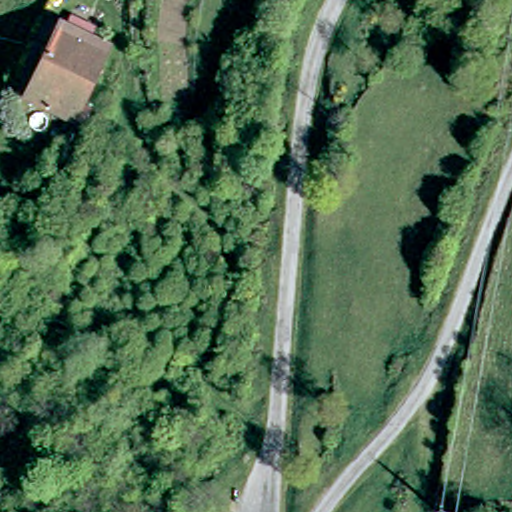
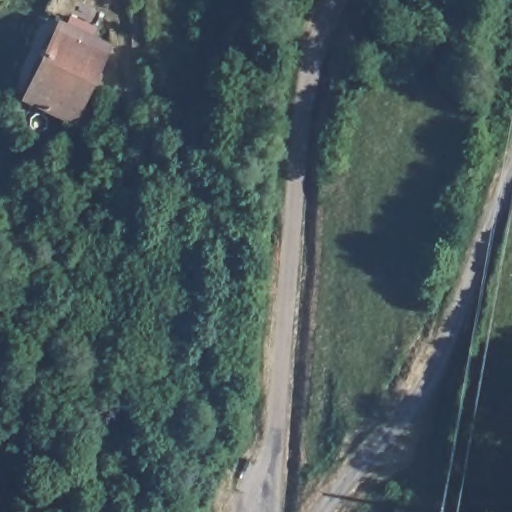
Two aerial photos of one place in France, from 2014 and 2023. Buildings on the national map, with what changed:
unchanged [(18,93),(52,20),(103,43),(69,116),(18,93)]

